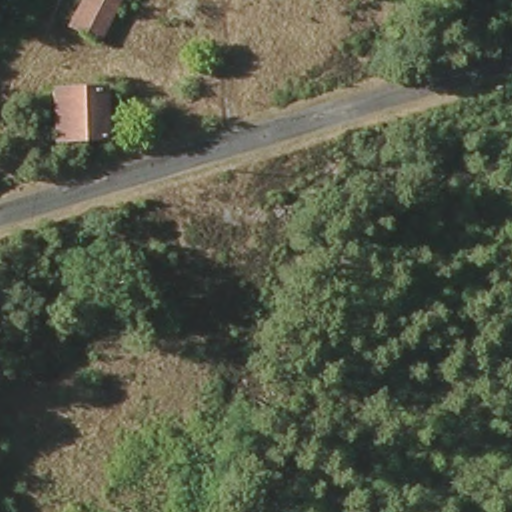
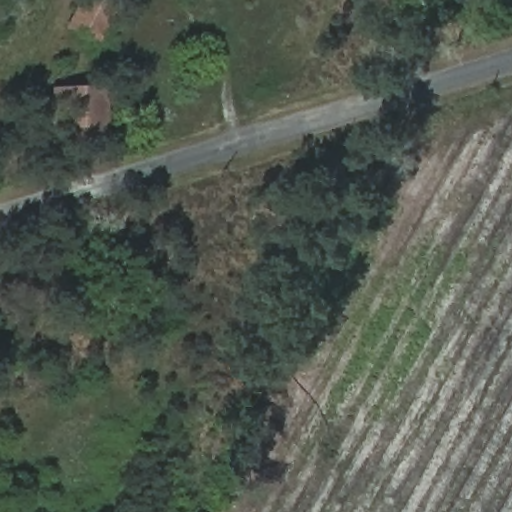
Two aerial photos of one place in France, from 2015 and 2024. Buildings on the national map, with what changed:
unchanged [(80,0),(120,0),(97,46),(67,29),(80,0)]
unchanged [(103,80),(102,153),(55,153),(52,81),(103,80)]

